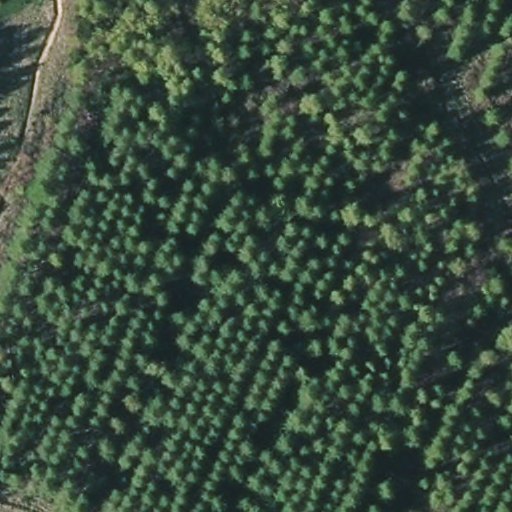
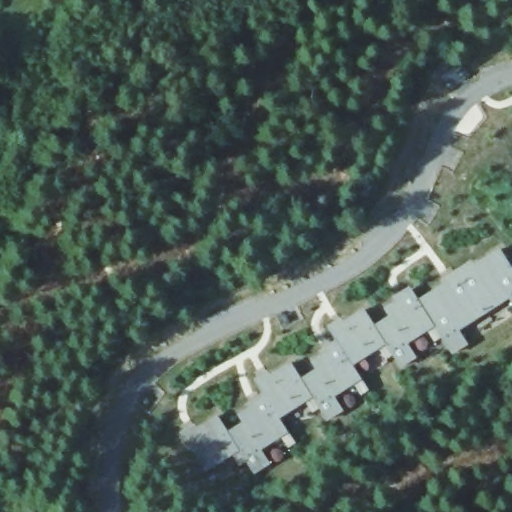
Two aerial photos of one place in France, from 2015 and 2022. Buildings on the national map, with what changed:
new [(512,269),(512,304),(509,300),(459,331),(469,346),(454,356),(442,338),(435,342),(429,332),(409,345),(418,358),(401,370),(393,357),(386,361),(379,350),(354,365),(370,391),(361,396),(355,385),(336,397),(345,413),(328,422),(320,410),(314,413),(306,402),(281,418),(296,443),(289,448),(281,437),(264,450),(271,463),(253,474),(246,462),(240,466),(234,456),(206,472),(179,432),(194,422),(198,426),(218,413),(228,431),(241,422),(236,415),(248,407),(244,403),(261,393),(253,378),(268,370),(270,373),(291,361),(301,377),(315,370),(311,361),(321,353),(319,350),(336,340),(326,326),(343,317),(344,320),(364,308),(375,325),(389,317),(383,308),(395,301),(393,297),(409,286),(419,299),(442,283),(439,280),(474,259),(476,262),(499,248),(512,269)]

